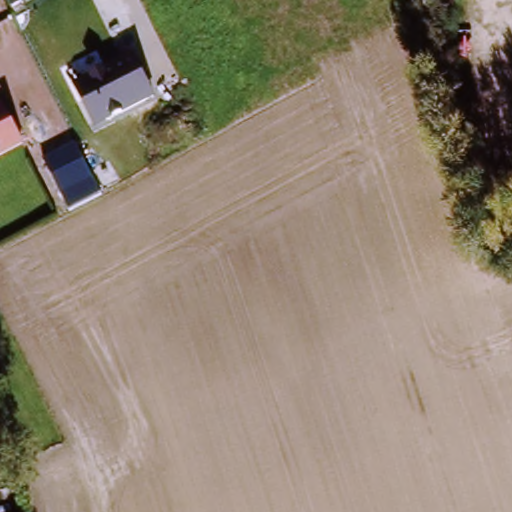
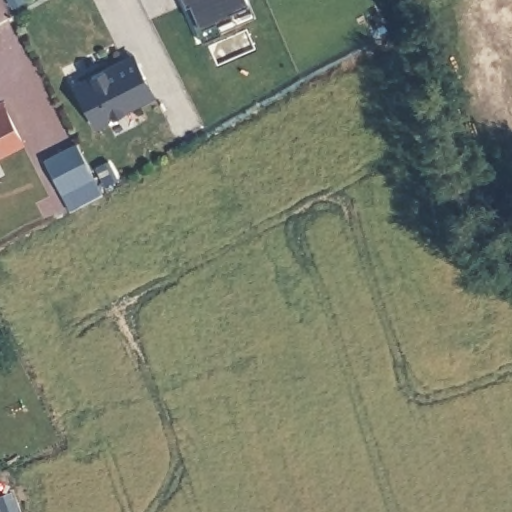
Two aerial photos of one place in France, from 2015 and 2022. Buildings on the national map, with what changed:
new [(219,36),(199,44),(183,6),(180,0),(245,0),(246,5),(252,17),(218,32),(219,36)]
unchanged [(133,56),(153,94),(97,126),(74,85),(133,56)]
unchanged [(20,145),(0,156),(0,107),(1,106),(20,145)]
unchanged [(101,193),(70,209),(45,161),(73,143),(101,193)]

